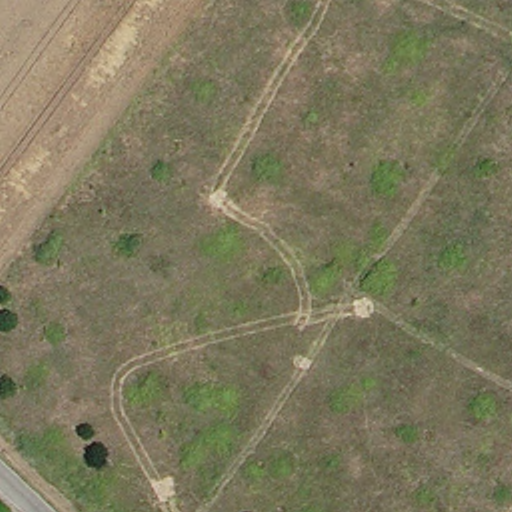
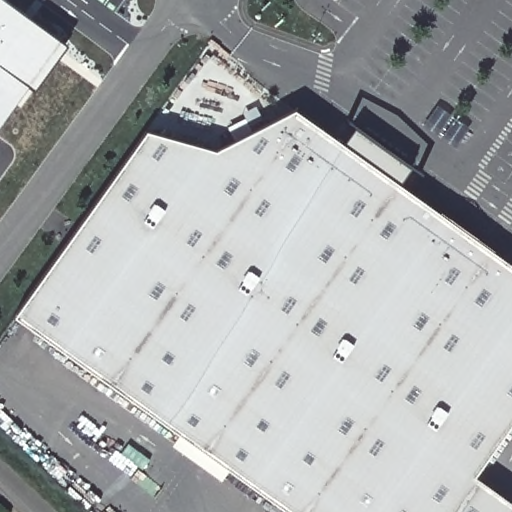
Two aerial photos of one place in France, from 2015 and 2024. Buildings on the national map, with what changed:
new [(8,0),(67,44),(34,89),(29,85),(0,124),(0,0),(8,0)]
new [(149,134),(217,154),(292,112),(512,265),(512,422),(448,512),(284,512),(11,317),(149,134)]
new [(474,475),(512,503),(512,512),(448,512),(474,475)]

